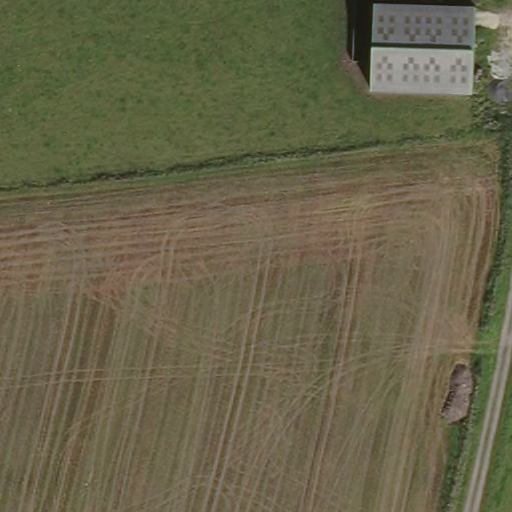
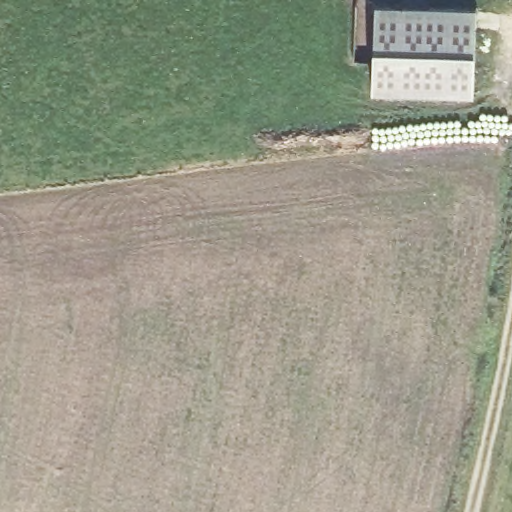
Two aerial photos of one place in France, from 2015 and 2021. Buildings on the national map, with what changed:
unchanged [(376,82),(381,0),(420,0),(481,4),(476,88),(376,82)]

